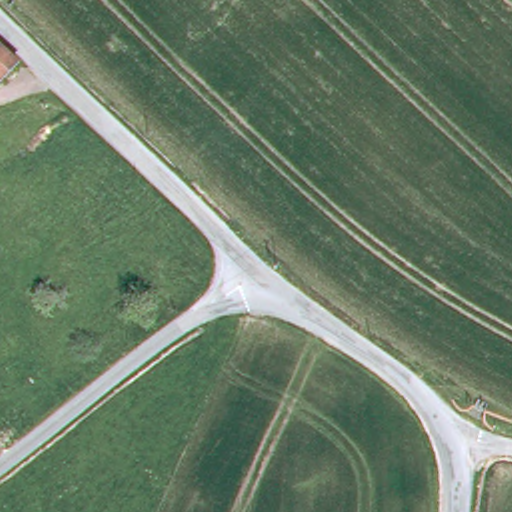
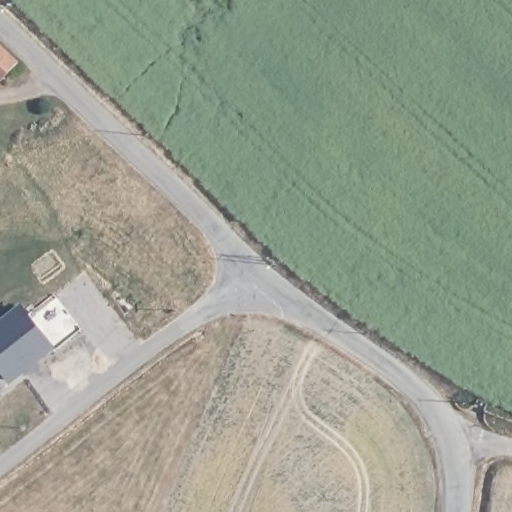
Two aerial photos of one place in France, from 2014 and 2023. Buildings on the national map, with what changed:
unchanged [(0,79),(0,45),(17,61),(0,79)]
new [(37,363),(39,367),(25,376),(22,373),(10,383),(0,371),(0,320),(20,304),(56,348),(37,363)]

